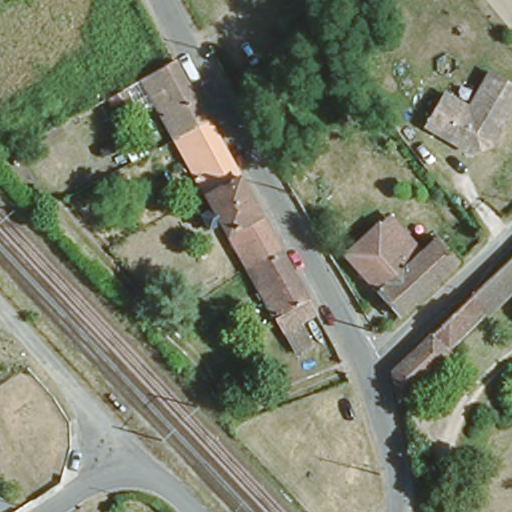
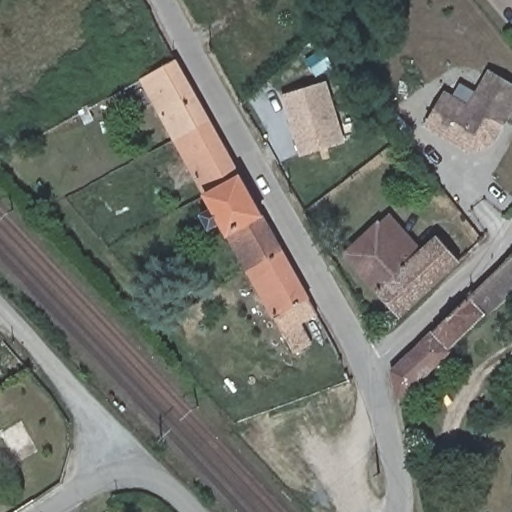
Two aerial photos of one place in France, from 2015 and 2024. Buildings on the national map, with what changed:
unchanged [(140,69),(174,51),(237,169),(206,183),(203,185),(140,69)]
unchanged [(472,155),(427,136),(443,100),(468,110),(484,73),(512,85),(512,107),(506,121),(500,134),(493,150),(472,155)]
new [(345,143),(299,157),(280,95),(326,81),(345,143)]
unchanged [(206,183),(237,169),(280,247),(277,249),(248,264),(218,209),(206,215),(197,199),(208,194),(203,185),(206,183)]
unchanged [(423,240),(439,226),(459,248),(396,308),(344,245),(383,212),(397,211),(423,240)]
unchanged [(469,288),(512,246),(512,277),(476,309),(467,299),(474,292),(469,288)]
unchanged [(314,307),(279,321),(248,264),(277,249),(280,247),(314,307)]
unchanged [(474,292),(467,299),(476,309),(442,340),(449,349),(397,396),(389,364),(469,288),(474,292)]

